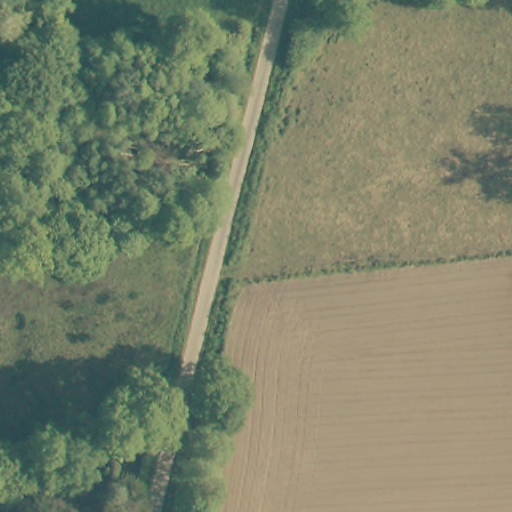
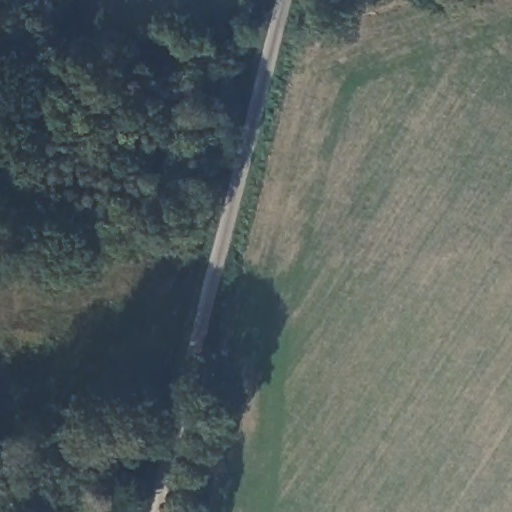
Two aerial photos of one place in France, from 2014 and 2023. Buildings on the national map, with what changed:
unchanged [(63,472),(70,491),(43,501),(36,482),(63,472)]

